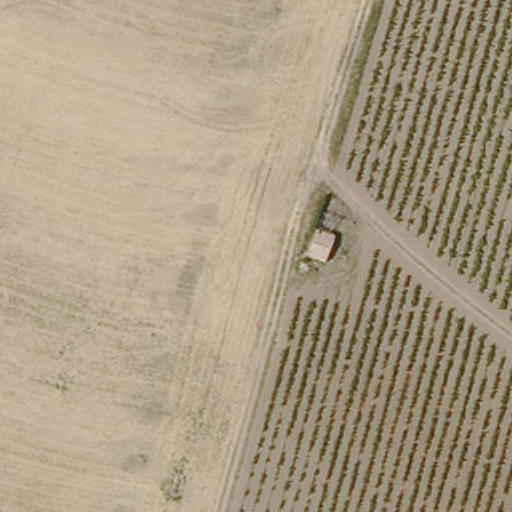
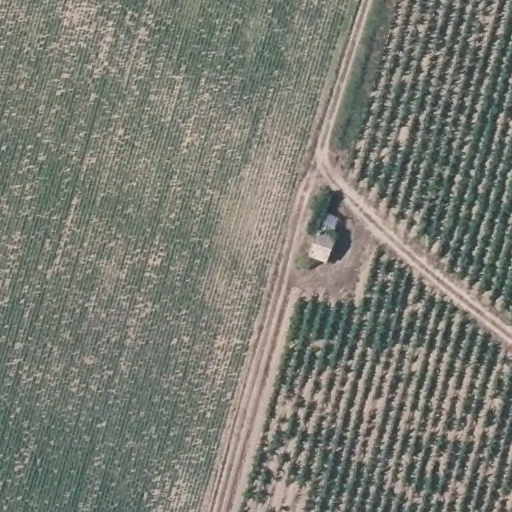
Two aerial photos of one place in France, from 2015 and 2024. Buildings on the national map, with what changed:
unchanged [(333,258),(306,252),(313,226),(339,232),(333,258)]

